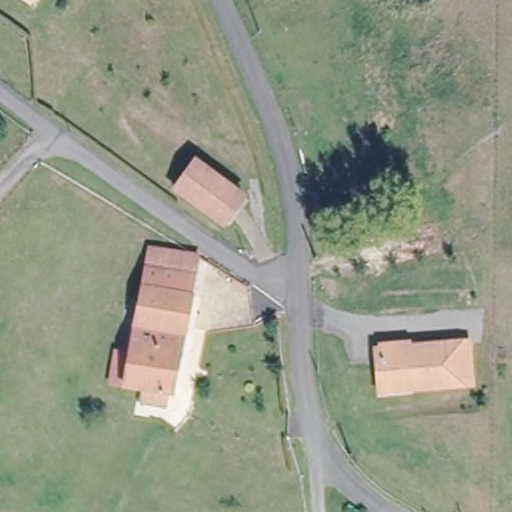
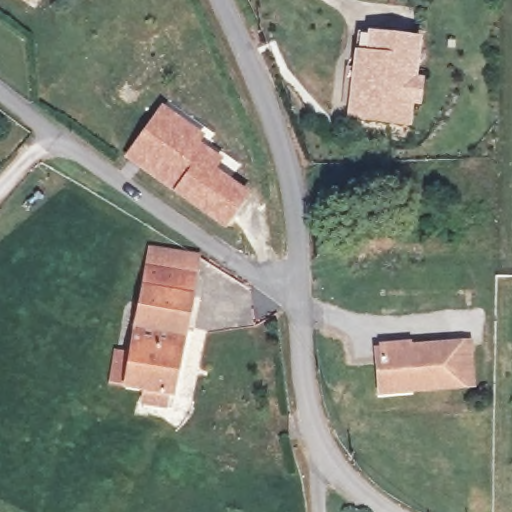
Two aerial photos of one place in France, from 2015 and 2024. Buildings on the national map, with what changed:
new [(366,47),(367,28),(422,34),(418,74),(424,74),(422,103),(413,103),(412,122),(348,116),(354,47),(366,47)]
new [(124,158),(161,104),(204,135),(200,141),(223,158),(216,169),(248,191),(243,197),(194,162),(173,192),(124,158)]
unchanged [(243,197),(222,227),(173,192),(194,162),(243,197)]
unchanged [(189,284),(142,276),(149,242),(195,250),(189,284)]
unchanged [(115,341),(129,344),(142,276),(189,284),(168,400),(142,395),(144,380),(123,376),(109,374),(115,341)]
demolished [(267,329),(270,354),(244,358),(240,333),(267,329)]
unchanged [(462,343),(466,343),(469,384),(464,385),(381,392),(377,350),(462,343)]

